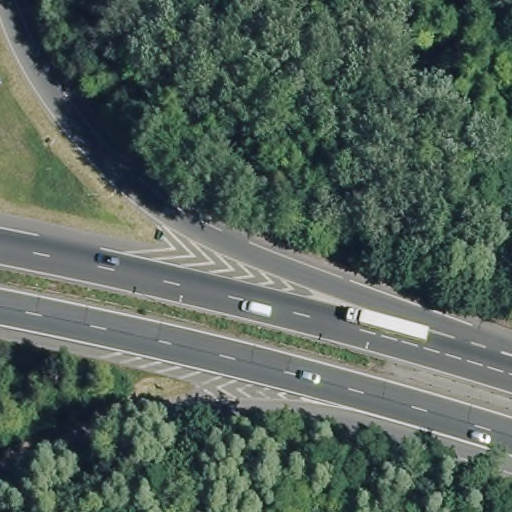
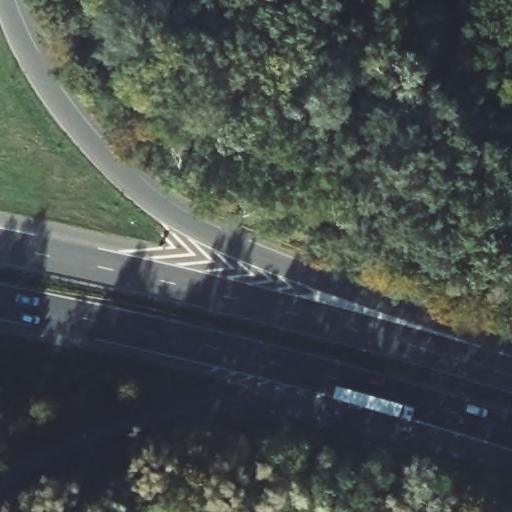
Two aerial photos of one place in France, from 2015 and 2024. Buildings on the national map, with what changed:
[]

